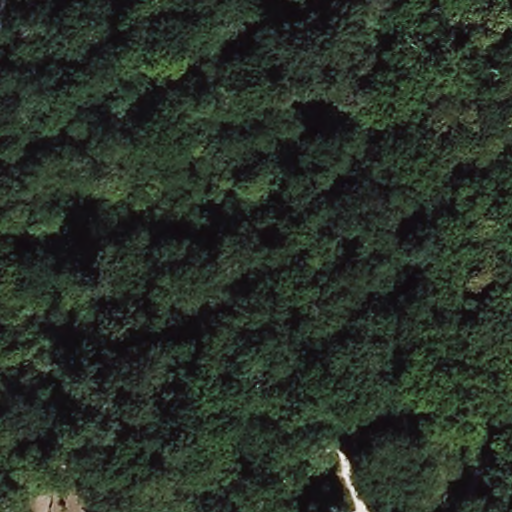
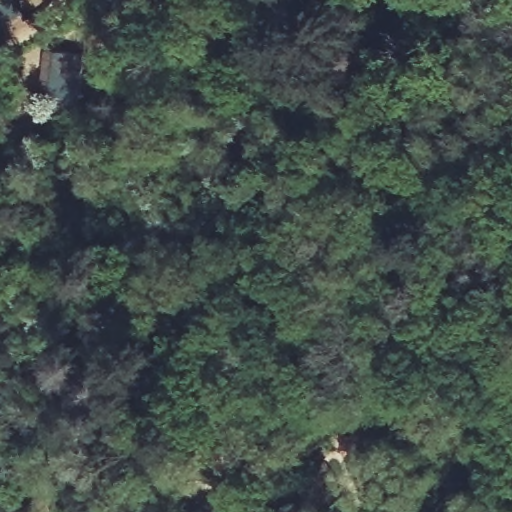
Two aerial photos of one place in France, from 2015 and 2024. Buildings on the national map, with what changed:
new [(40,94),(45,49),(84,54),(77,111),(70,110),(50,95),(40,94)]

